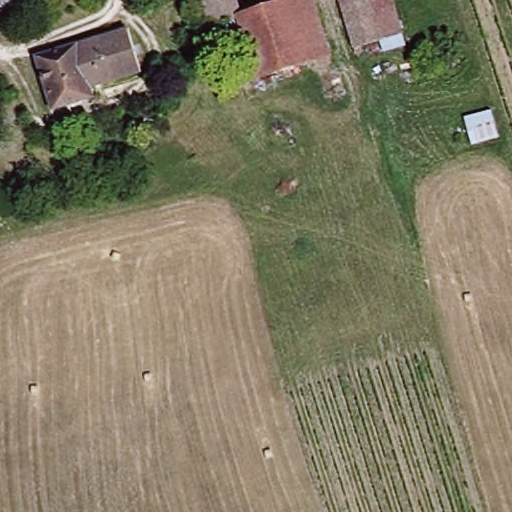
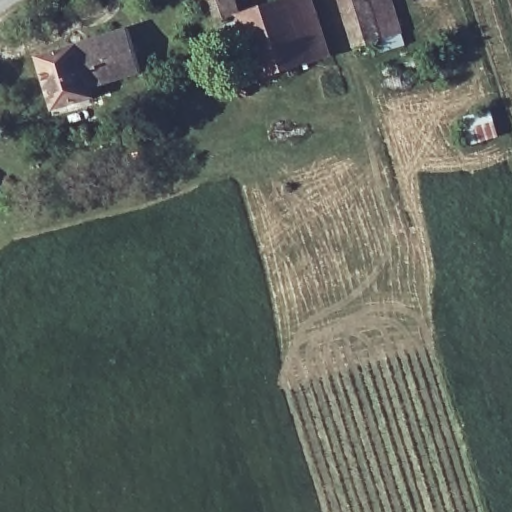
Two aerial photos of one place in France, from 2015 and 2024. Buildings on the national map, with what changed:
unchanged [(219,30),(208,33),(199,0),(234,0),(239,16),(244,36),(222,42),(219,30)]
unchanged [(294,0),(309,0),(326,58),(307,64),(289,2),(294,0)]
unchanged [(338,0),(366,0),(377,42),(351,50),(338,0)]
unchanged [(377,42),(366,0),(388,0),(397,37),(377,42)]
unchanged [(256,79),(244,36),(239,16),(289,2),(307,64),(256,79)]
unchanged [(37,55),(52,49),(125,30),(136,74),(72,94),(75,102),(48,109),(37,55)]

